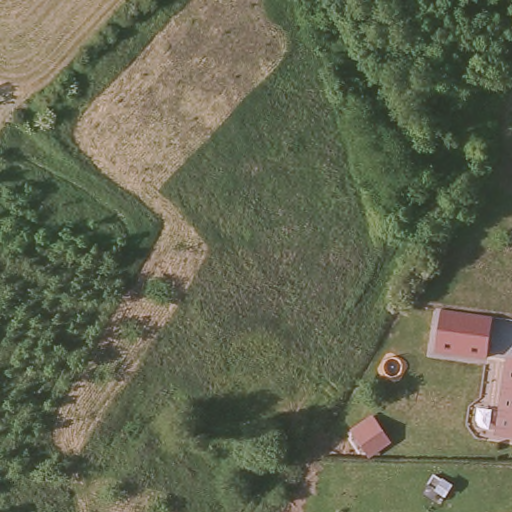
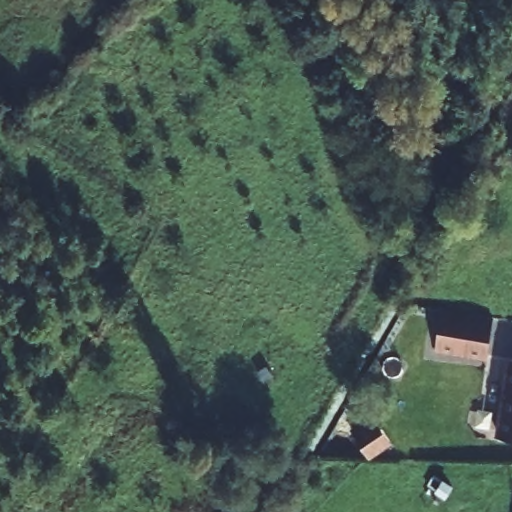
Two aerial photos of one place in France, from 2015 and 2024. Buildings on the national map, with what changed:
unchanged [(493,316),(487,359),(435,351),(442,308),(493,316)]
unchanged [(505,362),(512,363),(512,438),(494,435),(505,362)]

